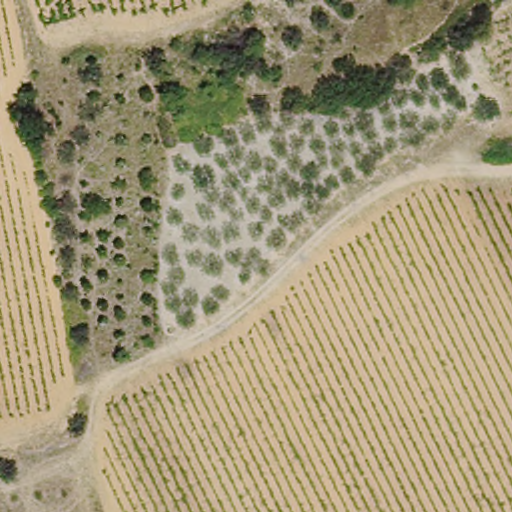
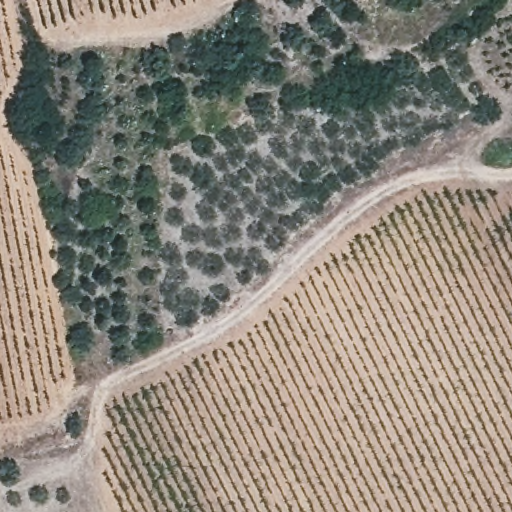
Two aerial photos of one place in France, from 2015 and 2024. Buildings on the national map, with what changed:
unchanged [(30,116),(33,134),(16,135),(12,121),(30,116)]

